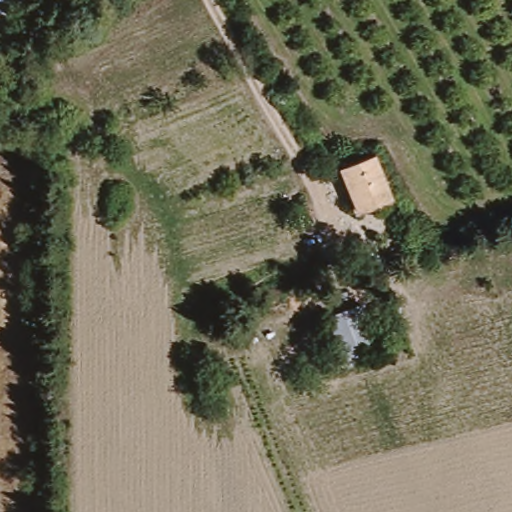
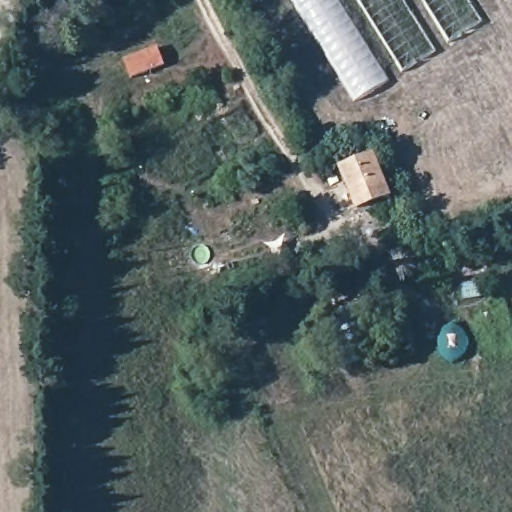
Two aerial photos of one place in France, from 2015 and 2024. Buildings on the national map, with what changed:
new [(292,0),(339,0),(390,81),(355,103),(292,0)]
new [(404,73),(357,0),(403,0),(437,54),(404,73)]
new [(469,0),(484,24),(450,44),(422,0),(469,0)]
unchanged [(373,159),(393,194),(367,208),(347,175),(373,159)]
unchanged [(357,303),(380,343),(348,363),(323,323),(357,303)]

